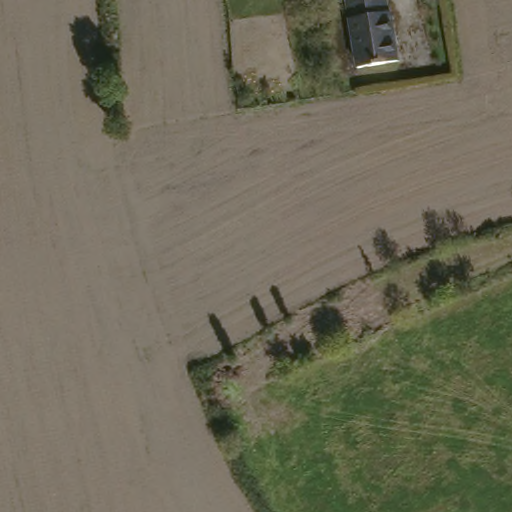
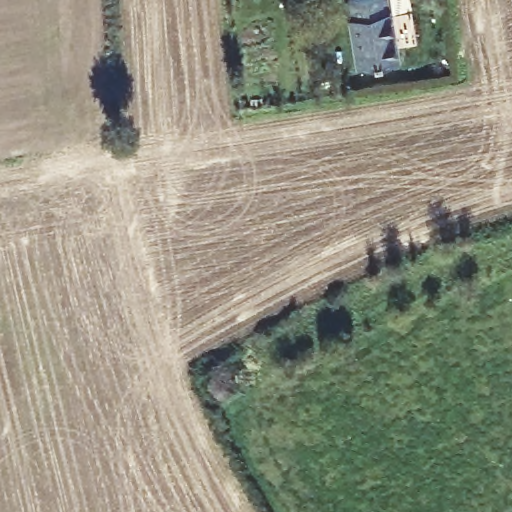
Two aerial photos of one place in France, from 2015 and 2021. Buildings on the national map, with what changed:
unchanged [(358,72),(348,4),(372,0),(385,0),(390,16),(392,15),(399,66),(358,72)]

